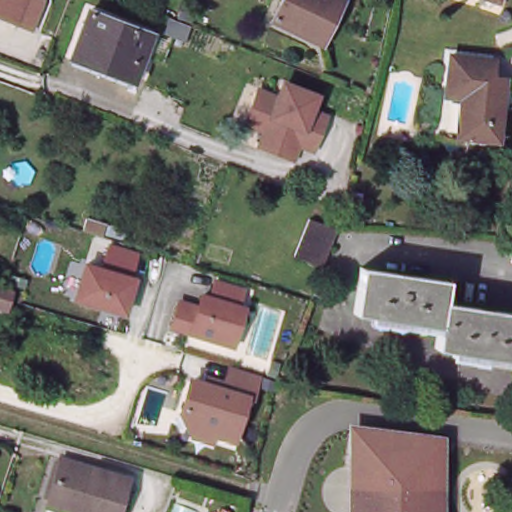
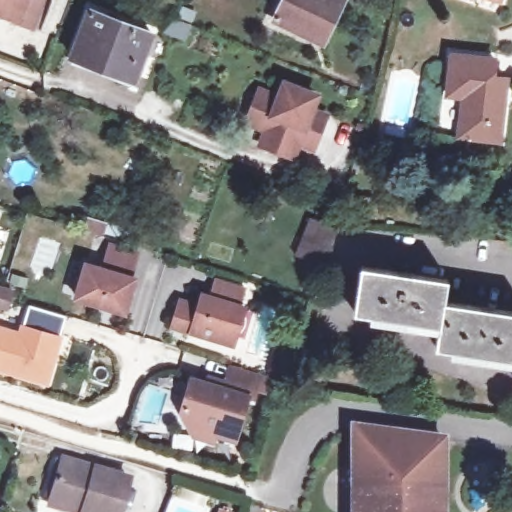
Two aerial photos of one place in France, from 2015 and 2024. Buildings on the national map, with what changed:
unchanged [(0,15),(0,0),(30,0),(25,14),(21,24),(15,21),(0,15)]
unchanged [(290,0),(339,0),(350,5),(330,48),(279,23),(290,0)]
unchanged [(140,83),(129,79),(75,59),(92,11),(153,34),(145,55),(150,58),(140,83)]
unchanged [(447,54),(490,59),(488,75),(501,77),(501,84),(495,139),(458,135),(462,96),(442,94),(447,54)]
unchanged [(244,111),(256,80),(275,88),(280,74),(310,85),(305,99),(320,105),(308,135),(293,129),(287,144),(258,133),(263,119),(244,111)]
unchanged [(105,237),(85,230),(90,217),(108,223),(105,237)]
unchanged [(327,255),(323,266),(295,254),(301,237),(310,217),(337,229),(330,248),(327,255)]
unchanged [(71,298),(81,264),(100,270),(108,243),(133,250),(125,278),(130,279),(120,312),(71,298)]
unchanged [(473,357),(440,352),(443,330),(394,323),(359,319),(366,273),(450,284),(447,307),(512,316),(512,363),(473,357)]
unchanged [(169,326),(176,301),(195,307),(198,294),(208,297),(214,278),(240,285),(234,305),(240,307),(230,344),(169,326)]
unchanged [(8,309),(0,306),(0,286),(13,290),(8,309)]
new [(0,366),(0,327),(22,334),(31,304),(67,316),(62,335),(55,361),(48,381),(0,366)]
unchanged [(195,429),(190,429),(186,419),(179,407),(188,376),(221,385),(228,361),(255,369),(247,394),(242,392),(230,433),(208,427),(206,433),(195,429)]
unchanged [(346,422),(445,436),(443,506),(444,512),(346,512),(346,422)]
unchanged [(50,499),(61,459),(86,466),(93,468),(130,479),(121,512),(68,512),(47,506),(50,499)]

